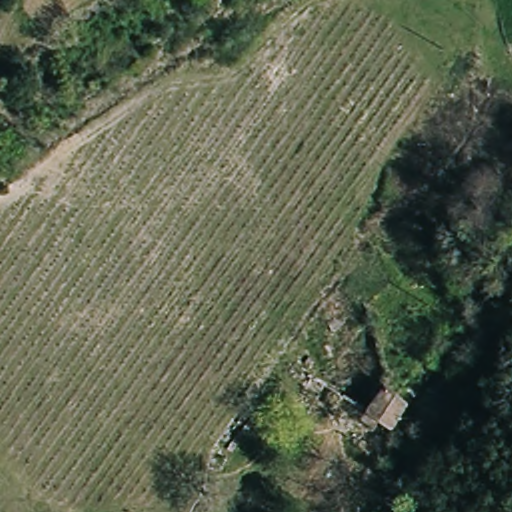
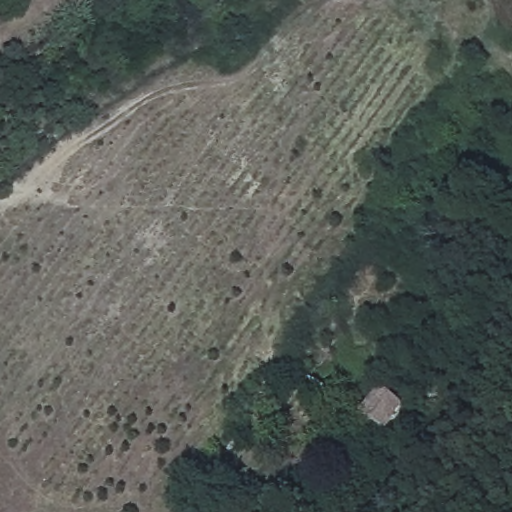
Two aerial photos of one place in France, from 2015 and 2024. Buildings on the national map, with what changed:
unchanged [(362,412),(379,389),(401,402),(408,407),(391,433),(384,428),(362,412)]

